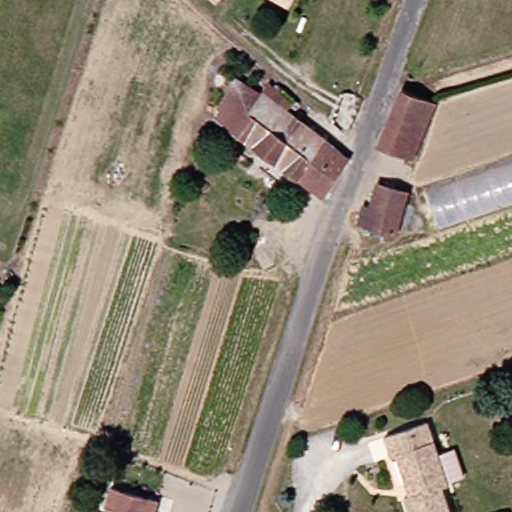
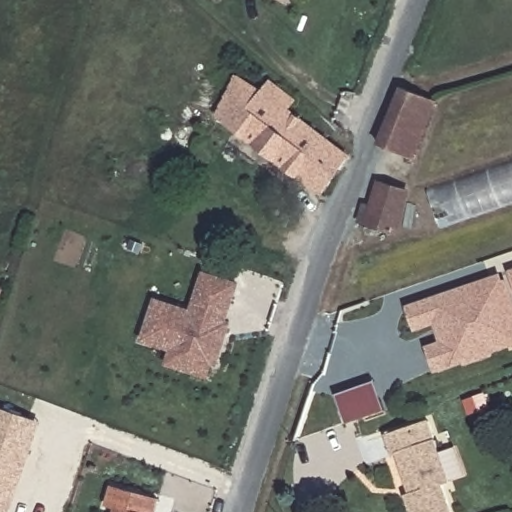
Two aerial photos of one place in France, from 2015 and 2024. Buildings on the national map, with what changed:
unchanged [(287,2),(284,0),(288,0),(287,2)]
unchanged [(267,161),(237,138),(225,128),(207,116),(225,76),(251,92),(260,81),(274,95),(283,103),(278,108),(285,115),(292,120),(299,125),(316,138),(326,147),(338,157),(312,195),(287,177),(267,161)]
unchanged [(393,93),(426,106),(403,163),(370,150),(393,93)]
unchanged [(432,233),(417,195),(512,162),(512,205),(432,233)]
unchanged [(391,231),(356,221),(360,206),(367,208),(374,184),(403,193),(391,231)]
new [(165,364),(169,350),(140,340),(153,300),(189,312),(196,289),(202,273),(235,284),(229,300),(222,323),(226,324),(223,334),(213,364),(209,362),(204,377),(165,364)]
new [(508,344),(486,351),(487,354),(464,361),(463,358),(448,315),(434,320),(415,326),(408,307),(498,276),(500,283),(503,281),(509,300),(512,308),(512,342),(508,344)]
new [(442,342),(434,320),(448,315),(463,358),(435,368),(427,346),(442,342)]
new [(36,421),(31,437),(16,482),(5,512),(0,512),(0,409),(27,418),(36,421)]
unchanged [(449,512),(408,512),(403,498),(408,496),(392,453),(387,455),(379,435),(421,420),(445,482),(439,485),(449,512)]
unchanged [(106,512),(101,511),(106,491),(154,504),(151,512),(106,512)]

